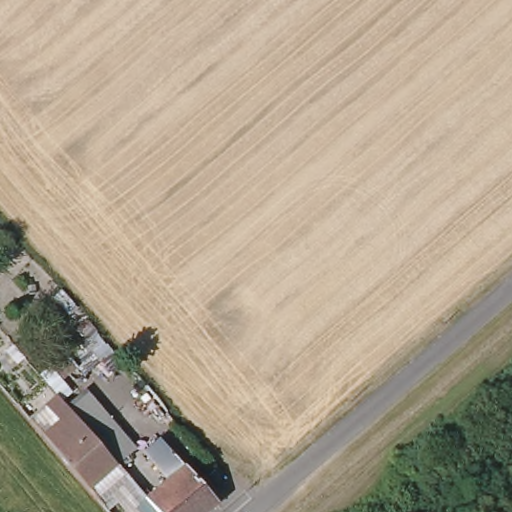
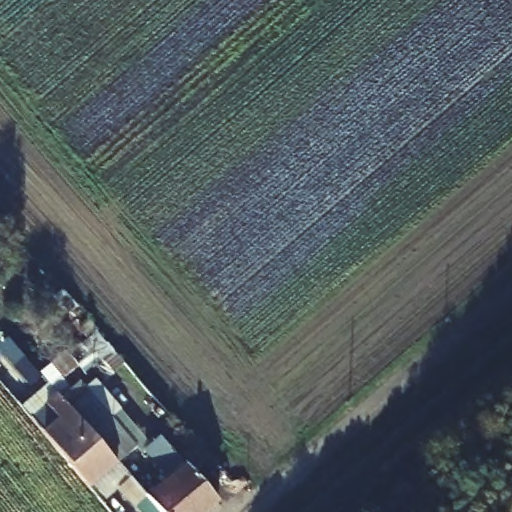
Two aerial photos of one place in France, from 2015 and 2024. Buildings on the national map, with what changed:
unchanged [(87,386),(140,444),(113,469),(62,409),(87,386)]
unchanged [(31,426),(17,408),(31,396),(43,387),(118,475),(91,498),(31,426)]
unchanged [(169,479),(146,453),(163,439),(217,502),(207,512),(160,512),(148,497),(169,479)]

